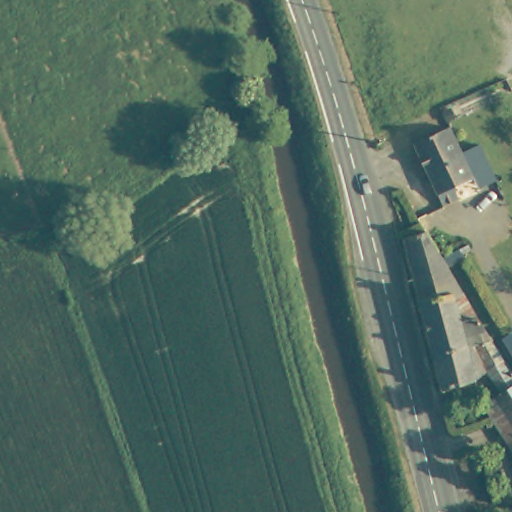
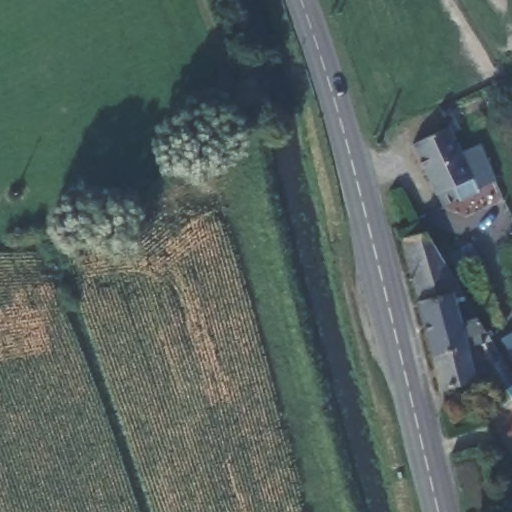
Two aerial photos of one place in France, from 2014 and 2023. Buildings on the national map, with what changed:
unchanged [(435,195),(412,143),(450,127),(472,177),(452,186),(458,197),(443,204),(438,192),(435,195)]
unchanged [(431,234),(457,293),(465,322),(478,320),(481,335),(467,338),(478,381),(442,392),(420,303),(402,241),(431,234)]
unchanged [(512,455),(480,405),(492,397),(498,393),(486,372),(477,377),(467,338),(481,335),(478,320),(492,343),(501,340),(512,334),(512,455)]

